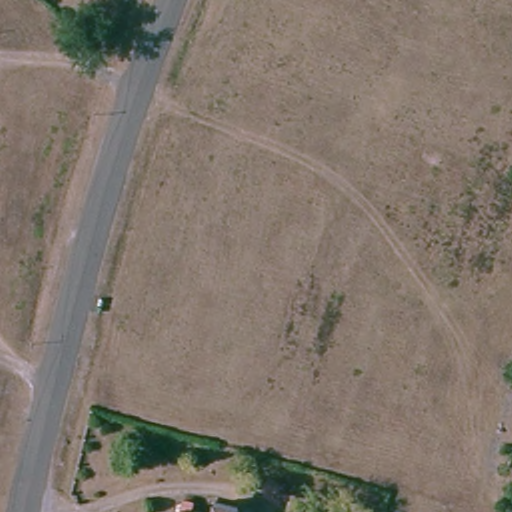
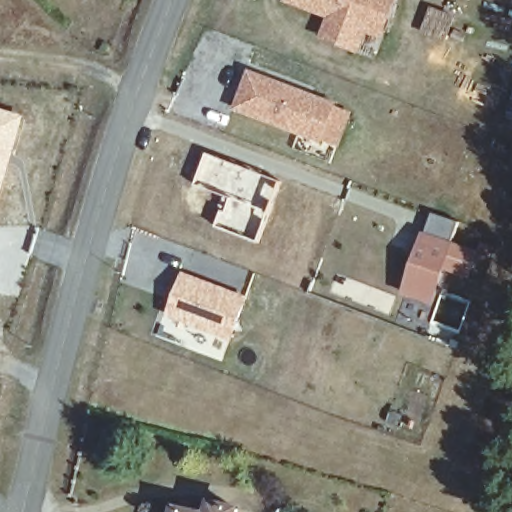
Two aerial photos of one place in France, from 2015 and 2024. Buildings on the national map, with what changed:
new [(384,39),(367,34),(360,54),(318,38),(327,17),(282,1),(283,0),(397,0),(384,39)]
new [(336,102),(335,105),(352,112),(340,146),(321,141),(320,143),(232,110),(248,70),(336,102)]
new [(24,115),(0,196),(0,108),(24,115)]
new [(455,242),(435,306),(402,294),(422,231),(455,242)]
new [(250,296),(233,342),(165,317),(182,271),(250,296)]
unchanged [(240,504),(238,512),(214,512),(217,499),(240,504)]
unchanged [(203,512),(183,512),(184,507),(203,512)]

